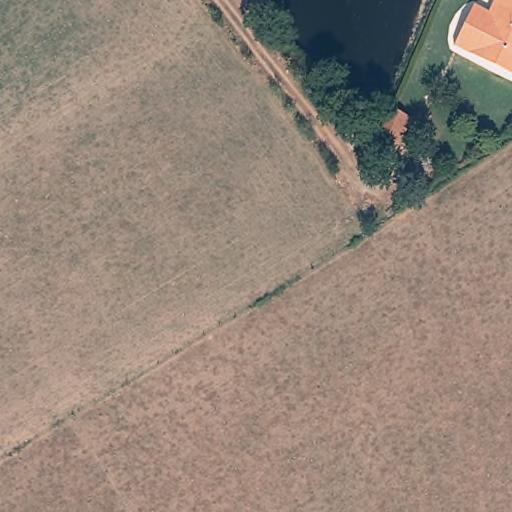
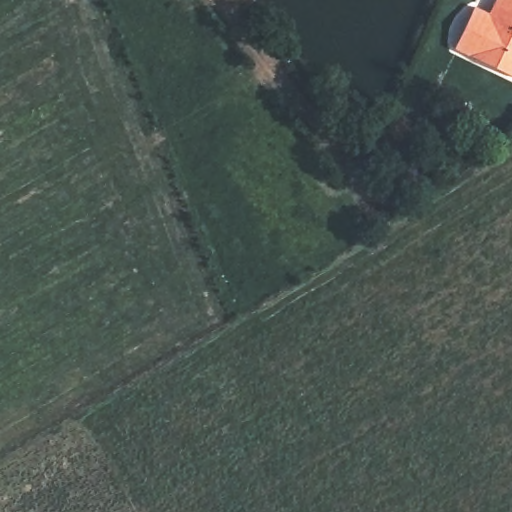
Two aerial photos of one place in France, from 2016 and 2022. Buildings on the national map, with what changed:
unchanged [(475,56),(495,16),(486,11),(493,0),(512,0),(512,70),(510,75),(503,71),(475,56)]
unchanged [(495,16),(475,56),(453,44),(472,4),(486,11),(495,16)]

